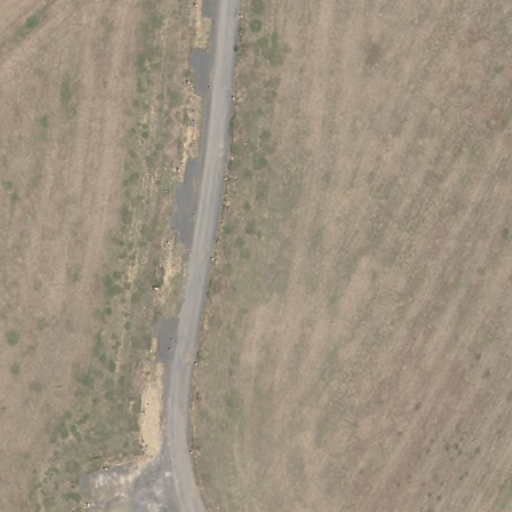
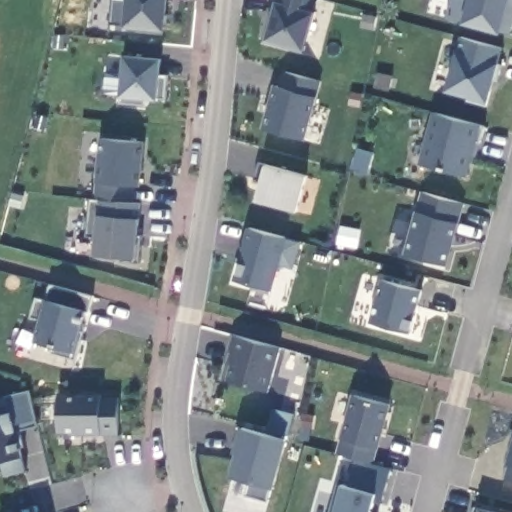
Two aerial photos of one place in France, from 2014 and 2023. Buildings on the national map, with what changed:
new [(165,31),(124,28),(126,0),(168,0),(165,31)]
new [(310,11),(315,12),(305,50),(268,40),(275,20),(271,19),(276,0),(313,0),(310,11)]
new [(506,14),(512,15),(512,27),(510,34),(501,30),(466,22),(447,17),(452,0),(509,0),(506,14)]
new [(457,51),(460,36),(504,49),(499,63),(488,104),(445,91),(457,51)]
unchanged [(121,104),(121,97),(124,56),(162,60),(161,75),(169,75),(166,98),(159,97),(159,100),(147,100),(147,106),(121,104)]
new [(274,85),(282,89),(285,70),(323,80),(319,99),(316,98),(305,140),(263,129),(274,85)]
new [(481,125),(485,126),(481,143),(477,141),(467,177),(419,164),(433,113),(481,125)]
new [(94,255),(96,236),(86,235),(91,200),(96,200),(98,182),(95,182),(101,139),(145,142),(140,187),(136,187),(135,202),(141,203),(141,219),(140,218),(139,236),(143,236),(140,263),(121,261),(121,258),(94,255)]
new [(261,181),(253,180),(258,164),(267,165),(307,176),(297,213),(256,201),(261,181)]
new [(416,211),(418,211),(423,192),(465,204),(460,224),(458,224),(447,267),(404,255),(416,211)]
new [(286,239),(303,242),(295,270),(280,265),(273,291),(234,280),(248,229),(286,239)]
new [(383,280),(422,291),(411,333),(371,322),(383,280)]
new [(51,353),(55,348),(34,341),(39,320),(30,317),(36,297),(49,300),(51,286),(91,297),(88,312),(86,311),(81,331),(85,332),(76,360),(51,353)]
new [(281,347),(269,391),(269,392),(227,381),(231,365),(228,363),(231,351),(228,350),(234,335),(281,347)]
new [(4,462),(0,463),(0,414),(11,412),(6,397),(30,390),(38,426),(17,432),(24,458),(26,472),(5,477),(4,462)]
new [(102,395),(101,398),(119,397),(119,435),(101,436),(71,435),(71,432),(57,431),(58,395),(102,395)]
new [(375,463),(392,468),(381,504),(374,501),(371,512),(335,512),(342,485),(348,486),(356,459),(339,453),(346,439),(341,438),(354,395),(391,405),(375,463)]
new [(246,496),(252,484),(230,477),(237,453),(233,451),(241,427),(287,440),(273,490),(268,502),(246,496)]
new [(506,480),(507,463),(512,444),(512,481),(506,480)]
new [(481,510),(490,512),(472,512),(474,507),(481,510)]

